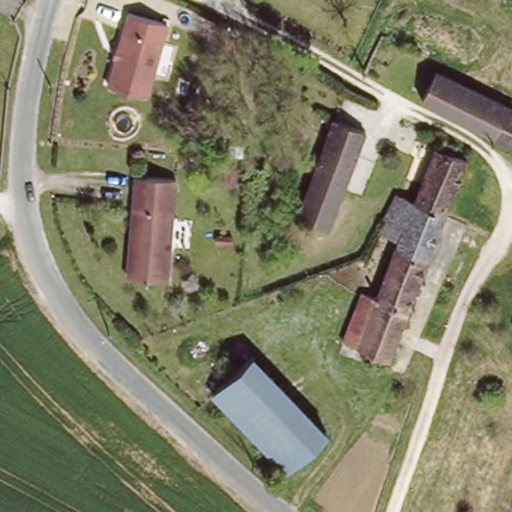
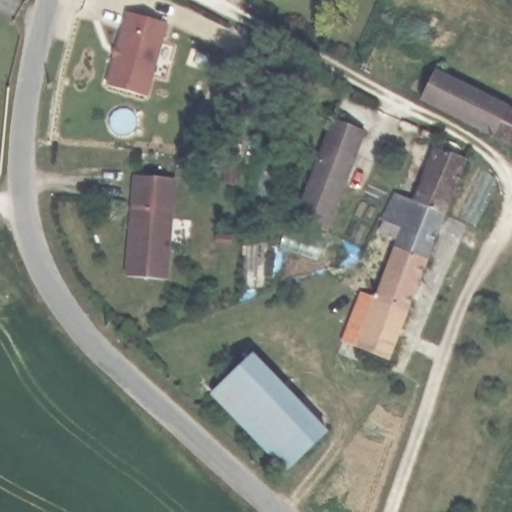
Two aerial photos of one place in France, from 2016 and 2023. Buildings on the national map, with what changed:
unchanged [(171,26),(151,97),(113,86),(133,15),(171,26)]
unchanged [(442,72),(512,106),(512,116),(502,136),(428,99),(442,72)]
unchanged [(512,116),(512,140),(502,136),(512,116)]
unchanged [(368,139),(332,236),(301,225),(337,127),(368,139)]
unchanged [(417,208),(445,134),(466,155),(468,170),(449,220),(417,208)]
unchanged [(181,186),(175,281),(132,278),(139,183),(181,186)]
unchanged [(392,365),(347,348),(366,299),(380,305),(403,247),(395,244),(400,232),(389,227),(399,201),(417,208),(449,220),(392,365)]
unchanged [(242,418),(220,395),(258,356),(334,433),(295,472),(285,461),(242,418)]

